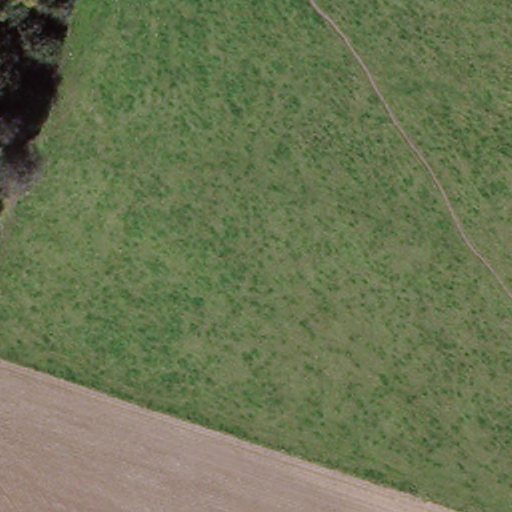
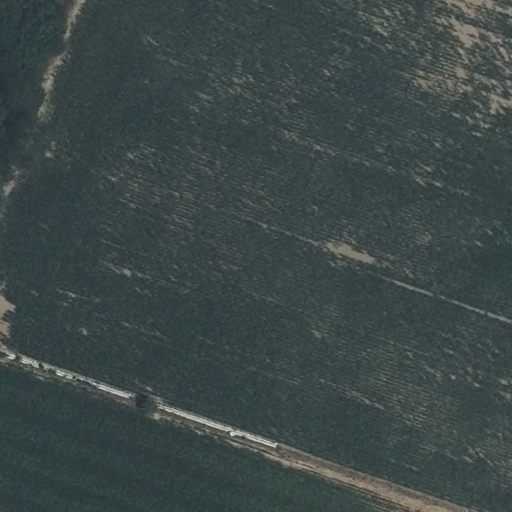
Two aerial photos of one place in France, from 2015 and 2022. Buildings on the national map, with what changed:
[]

